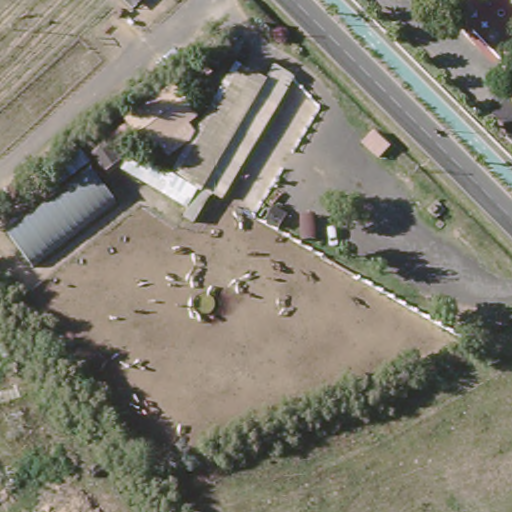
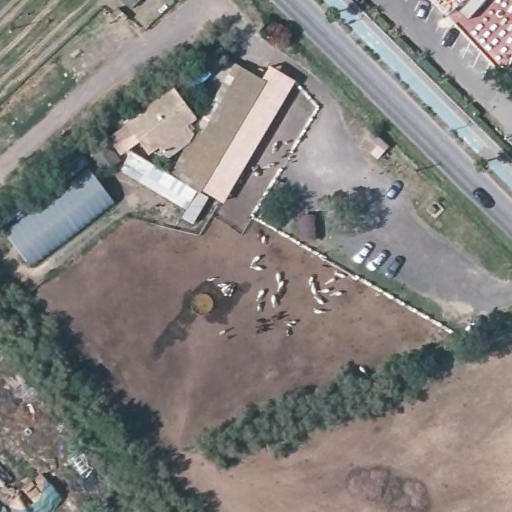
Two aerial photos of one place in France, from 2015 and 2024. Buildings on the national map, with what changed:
unchanged [(265,81),(203,190),(173,172),(236,65),(265,81)]
unchanged [(221,200),(203,190),(265,81),(274,65),(295,77),(221,200)]
unchanged [(172,85),(191,113),(140,151),(121,121),(172,85)]
unchanged [(86,169),(113,202),(31,263),(6,230),(86,169)]
unchanged [(280,218),(274,227),(265,221),(271,212),(280,218)]

